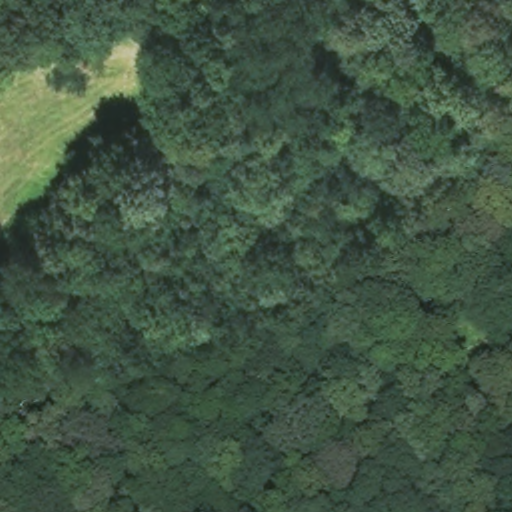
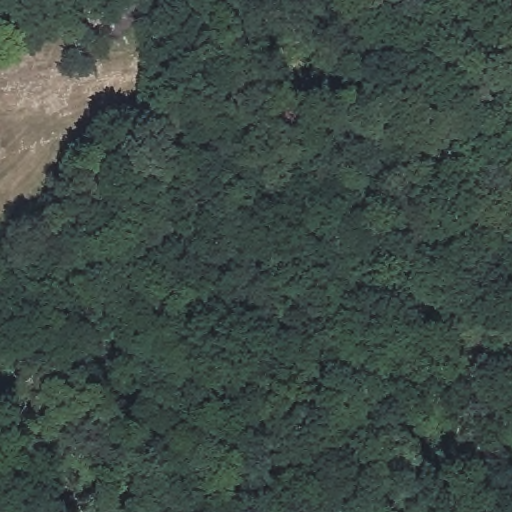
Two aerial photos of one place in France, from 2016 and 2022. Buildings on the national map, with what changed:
unchanged [(143,0),(145,4),(89,27),(76,4),(88,0),(143,0)]

